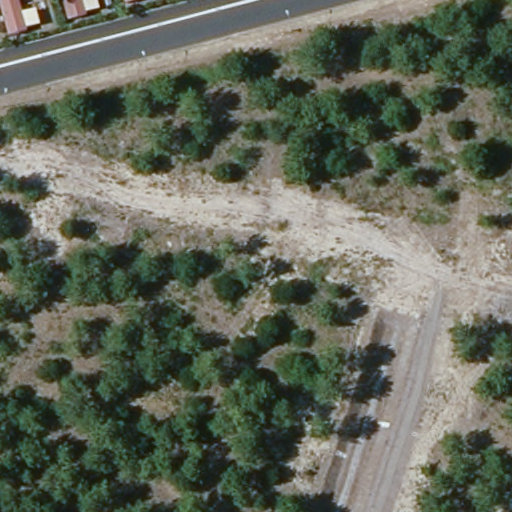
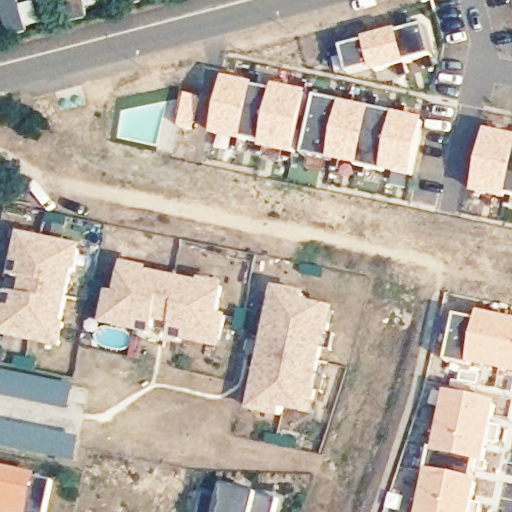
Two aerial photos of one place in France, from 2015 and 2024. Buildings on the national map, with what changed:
new [(427,22),(435,52),(378,67),(377,63),(351,70),(344,44),(427,22)]
new [(230,77),(279,88),(279,85),(309,91),(298,150),(268,143),(269,141),(219,131),(230,77)]
new [(319,93),(349,99),(348,102),(372,107),(373,105),(402,111),(401,113),(426,119),(414,172),(390,166),(389,169),(360,163),(361,160),(337,155),(336,158),(307,151),(319,93)]
new [(486,129),(512,134),(512,193),(504,191),(504,193),(474,187),(486,129)]
new [(25,252),(23,252),(28,230),(84,241),(80,263),(77,262),(71,288),(46,284),(48,276),(21,270),(25,252)]
new [(117,284),(126,286),(131,259),(158,264),(157,267),(179,272),(174,298),(165,296),(160,321),(134,315),(133,318),(111,314),(117,284)]
new [(179,272),(200,276),(201,273),(227,279),(222,306),(230,307),(224,337),(202,333),(203,330),(176,324),(182,299),(174,298),(179,272)]
new [(13,303),(14,304),(18,286),(44,291),(46,284),(71,288),(66,315),(69,316),(64,337),(9,325),(13,303)]
new [(285,411),(283,420),(250,414),(275,289),(309,296),(308,303),(337,310),(321,378),(326,379),(317,417),(285,411)]
new [(447,362),(456,315),(476,319),(478,312),(512,319),(512,375),(484,369),(479,386),(457,382),(462,365),(447,362)]
new [(0,397),(0,372),(76,388),(70,411),(0,397)]
new [(448,394),(498,404),(493,440),(498,440),(495,450),(493,450),(493,447),(489,446),(484,465),(433,453),(448,394)]
new [(0,448),(0,445),(4,423),(83,439),(77,464),(0,448)]
new [(37,479),(54,484),(47,512),(0,512),(0,467),(39,475),(37,479)]
new [(428,471),(477,481),(471,512),(420,512),(428,471)]
new [(222,503),(226,487),(259,496),(281,502),(278,512),(201,512),(205,498),(222,503)]

